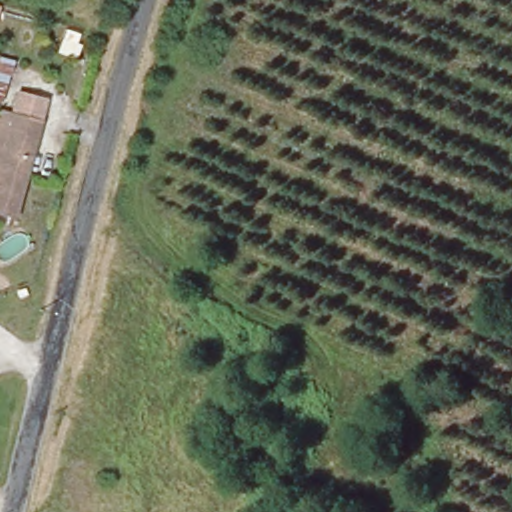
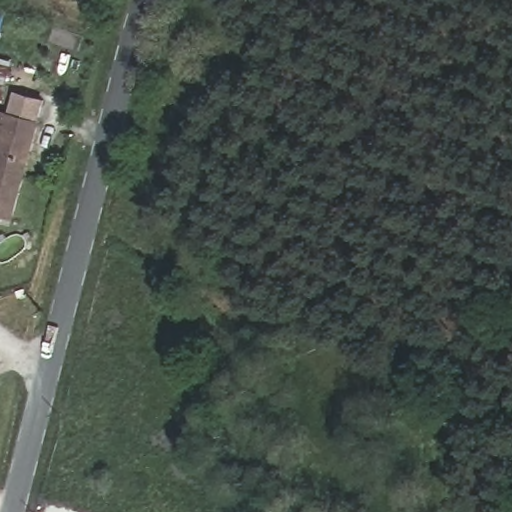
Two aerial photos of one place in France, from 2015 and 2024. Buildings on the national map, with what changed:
unchanged [(0,104),(0,60),(12,64),(0,104)]
unchanged [(0,215),(0,113),(8,116),(14,95),(46,104),(13,219),(0,215)]

